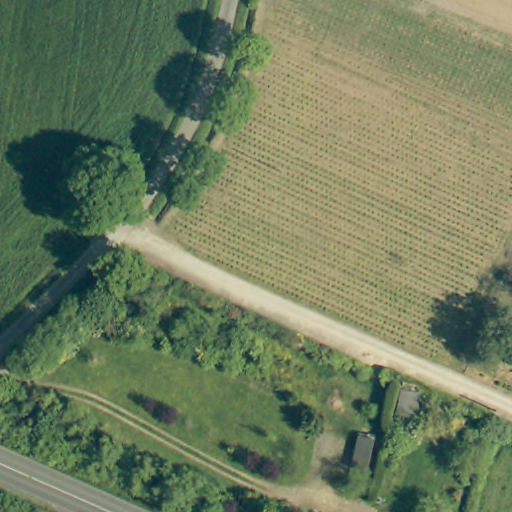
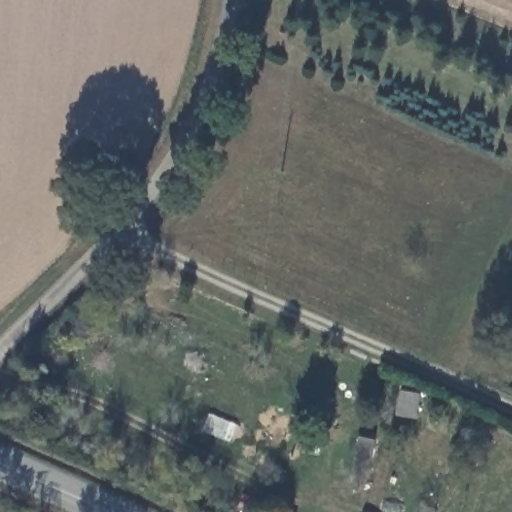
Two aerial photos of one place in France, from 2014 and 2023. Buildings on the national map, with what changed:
unchanged [(427,387),(423,413),(403,410),(409,383),(427,387)]
unchanged [(379,435),(371,464),(358,461),(365,431),(379,435)]

